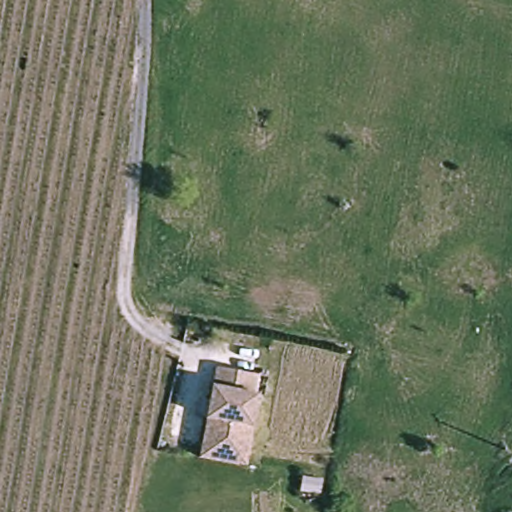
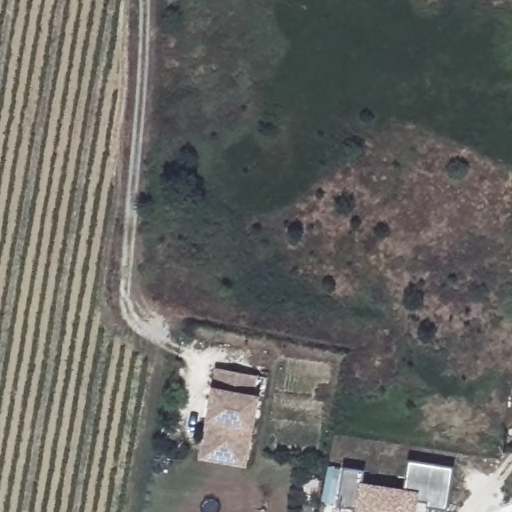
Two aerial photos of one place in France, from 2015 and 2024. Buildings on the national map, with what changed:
unchanged [(199,466),(202,452),(215,390),(218,375),(258,384),(268,386),(264,402),(263,405),(259,404),(248,461),(245,474),(199,466)]
new [(360,473),(358,487),(400,493),(404,463),(449,470),(442,512),(423,509),(423,505),(411,503),(410,512),(353,512),(353,511),(334,508),(340,470),(360,473)]

